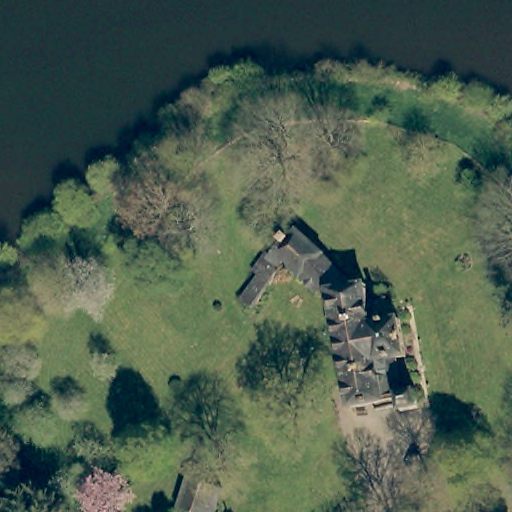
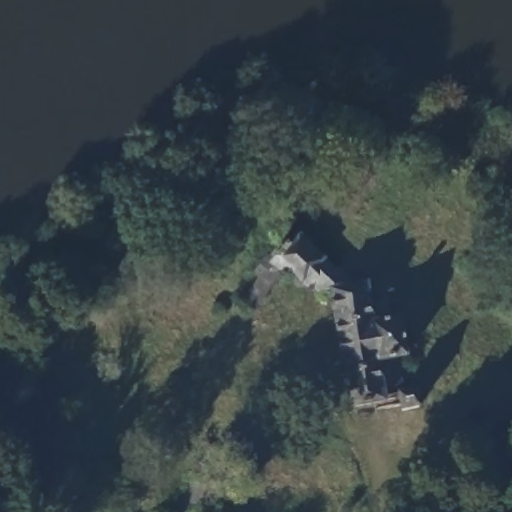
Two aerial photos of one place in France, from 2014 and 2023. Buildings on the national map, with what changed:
unchanged [(259,313),(249,304),(242,299),(260,278),(254,271),(269,254),(275,260),(288,245),(283,240),(288,234),(294,239),(303,229),(347,276),(360,288),(332,296),(316,296),(290,266),(285,272),(261,303),(265,306),(259,313)]
unchanged [(360,288),(370,285),(374,307),(392,305),(393,317),(405,317),(411,360),(398,362),(403,396),(417,394),(420,416),(403,418),(402,412),(379,415),(378,406),(352,410),(332,296),(360,288)]
unchanged [(228,487),(218,512),(189,512),(183,510),(177,507),(191,474),(228,487)]

